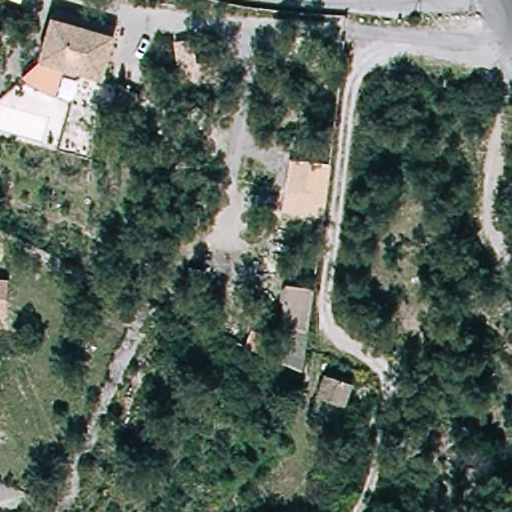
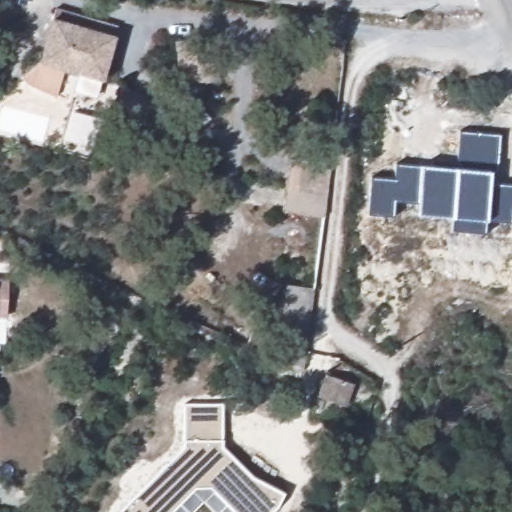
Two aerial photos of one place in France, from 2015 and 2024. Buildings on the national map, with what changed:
unchanged [(31,61),(44,16),(110,34),(96,80),(31,61)]
unchanged [(219,82),(179,82),(175,40),(195,39),(197,63),(218,62),(219,82)]
unchanged [(115,110),(126,89),(144,99),(134,120),(115,110)]
new [(371,177),(395,180),(396,165),(422,166),(457,168),(460,131),(501,135),(497,184),(512,185),(512,223),(487,220),(485,233),(452,231),(452,216),(417,213),(419,203),(394,201),(393,216),(368,215),(371,177)]
new [(324,218),(281,214),(288,160),(330,166),(324,218)]
unchanged [(10,317),(0,315),(0,279),(14,281),(10,317)]
unchanged [(303,370),(276,361),(286,285),(314,289),(303,370)]
unchanged [(319,400),(327,378),(356,388),(347,411),(319,400)]
new [(222,442),(222,449),(251,478),(283,494),(279,505),(271,512),(234,512),(211,487),(194,488),(170,512),(118,512),(183,447),(184,441),(184,404),(222,404),(222,442)]
unchanged [(393,449),(423,433),(432,450),(402,466),(393,449)]
unchanged [(448,484),(449,468),(461,469),(459,486),(448,484)]
unchanged [(470,470),(482,473),(478,487),(467,484),(470,470)]

